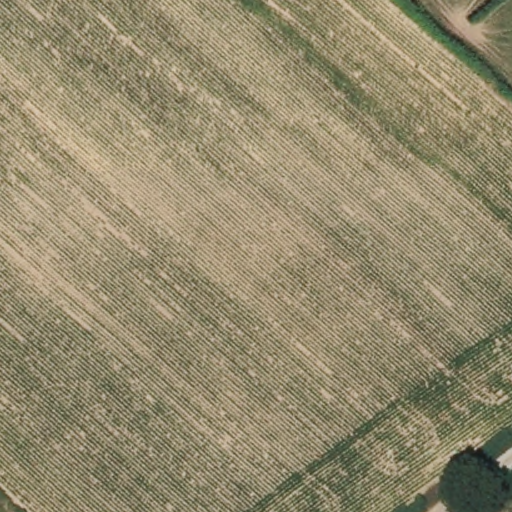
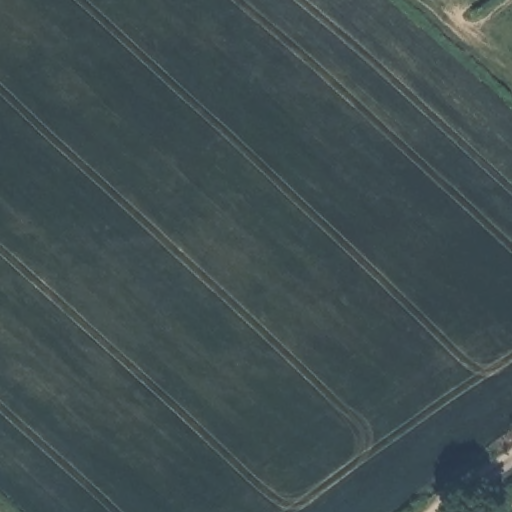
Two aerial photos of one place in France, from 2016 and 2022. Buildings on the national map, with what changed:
[]

